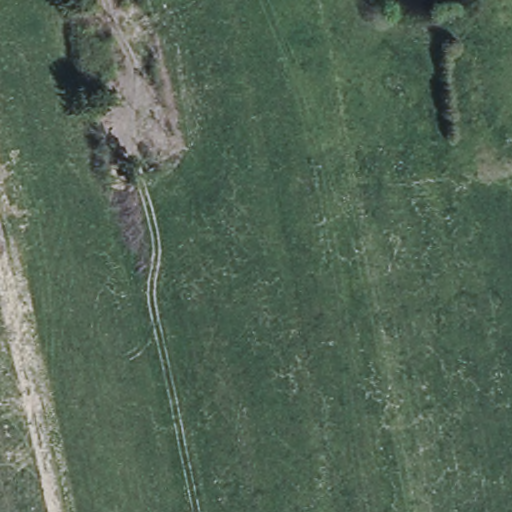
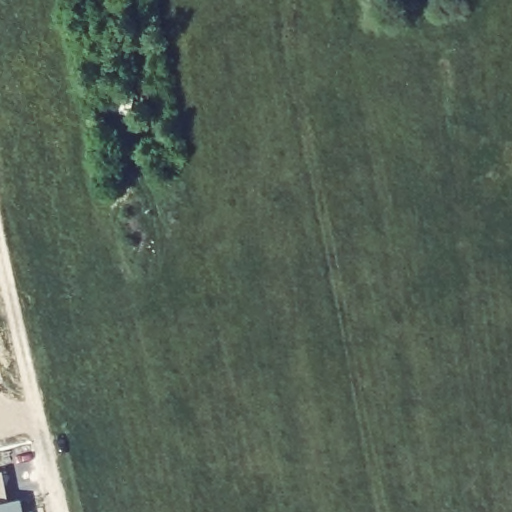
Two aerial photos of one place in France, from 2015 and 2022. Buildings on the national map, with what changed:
new [(2,472),(8,502),(19,500),(21,512),(0,512),(0,472),(2,472)]

